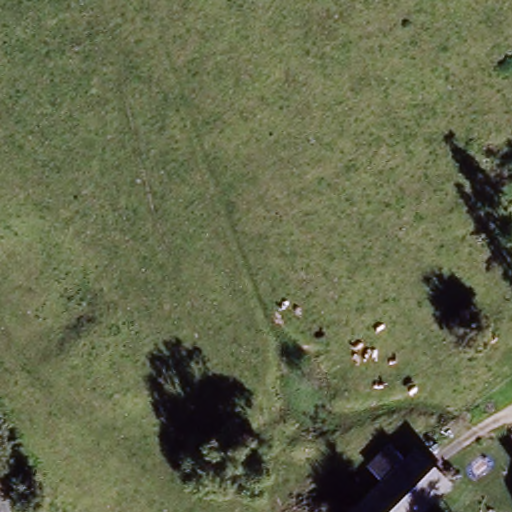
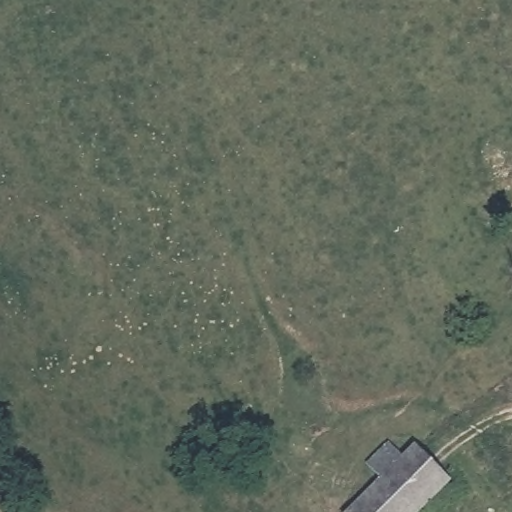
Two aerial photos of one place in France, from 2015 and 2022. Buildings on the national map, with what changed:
unchanged [(451,492),(427,512),(353,512),(381,488),(367,470),(391,449),(406,467),(420,455),(451,492)]

